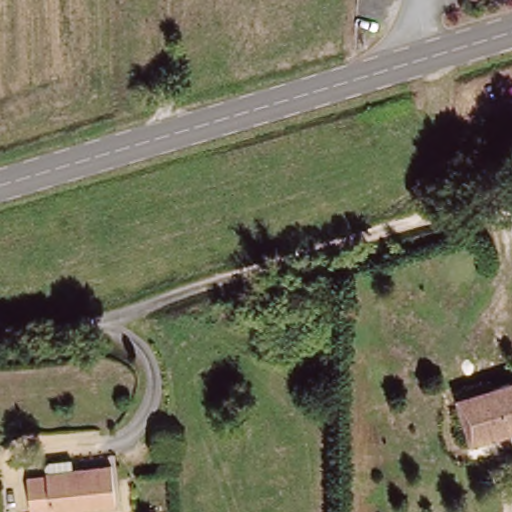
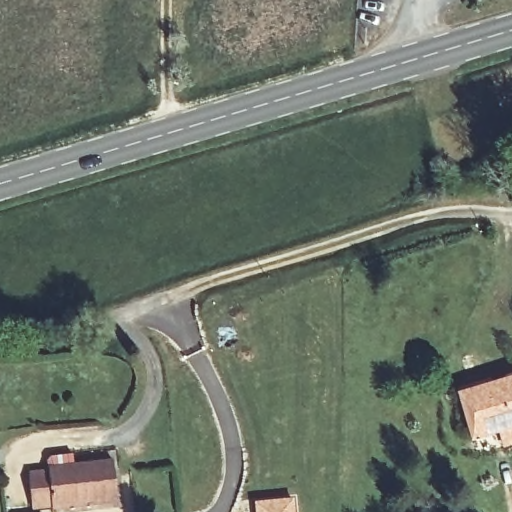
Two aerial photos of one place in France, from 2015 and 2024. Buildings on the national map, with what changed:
unchanged [(507,437),(481,447),(467,406),(464,395),(497,385),(498,390),(512,386),(512,431),(506,433),(507,437)]
unchanged [(59,467),(59,456),(67,447),(95,446),(96,463),(117,463),(119,505),(59,509),(59,503),(35,506),(34,467),(59,467)]
new [(295,501),(295,512),(256,512),(256,502),(295,501)]

